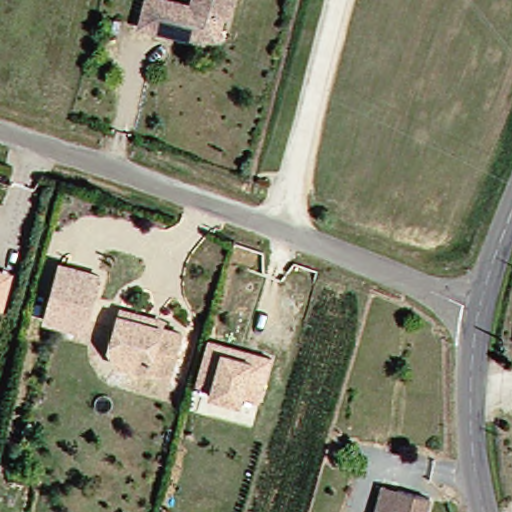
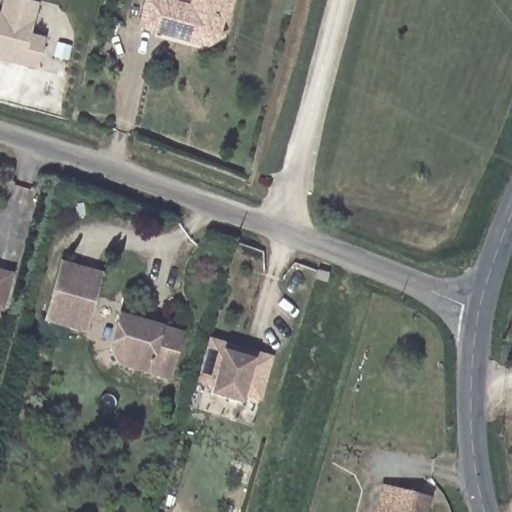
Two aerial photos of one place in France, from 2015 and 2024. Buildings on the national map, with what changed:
new [(5,0),(38,0),(30,33),(44,36),(37,65),(0,55),(0,11),(2,12),(5,0)]
unchanged [(149,30),(128,25),(134,0),(167,0),(183,5),(184,0),(225,0),(220,16),(217,14),(211,37),(199,42),(149,30)]
unchanged [(104,270),(86,332),(42,319),(59,257),(104,270)]
unchanged [(0,299),(0,270),(7,272),(0,299)]
unchanged [(144,317),(143,323),(174,332),(161,377),(110,362),(104,347),(114,308),(144,317)]
unchanged [(256,356),(273,361),(262,404),(245,400),(244,407),(213,398),(214,391),(197,387),(209,343),(227,348),(256,356)]
unchanged [(365,512),(362,511),(371,482),(389,487),(416,495),(412,512),(365,512)]

